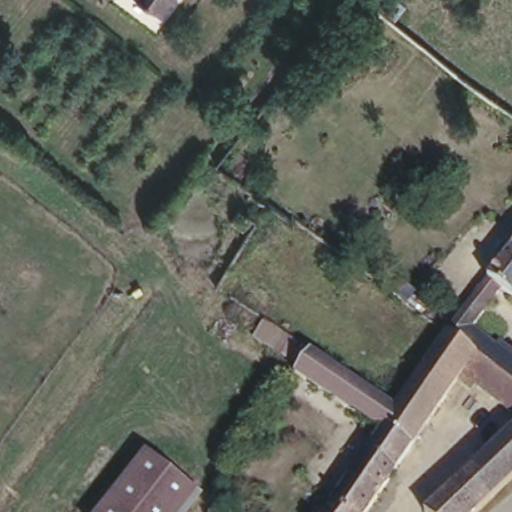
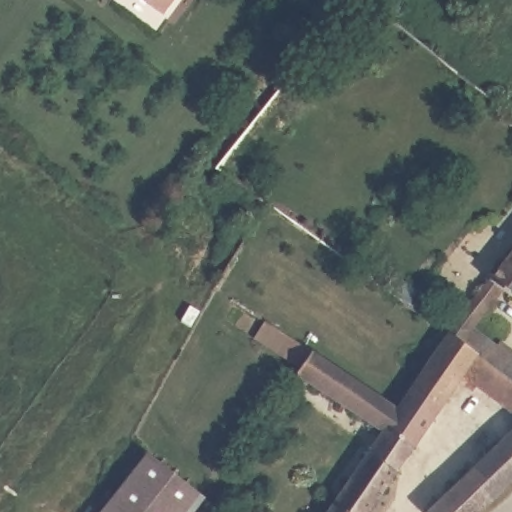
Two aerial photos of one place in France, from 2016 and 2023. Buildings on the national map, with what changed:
unchanged [(159,11),(145,0),(168,0),(159,11)]
unchanged [(461,374),(365,512),(326,512),(385,428),(298,370),(302,365),(313,347),(401,407),(451,334),(487,276),(482,272),(512,235),(512,296),(497,285),(471,328),(512,358),(512,410),(461,374)]
unchanged [(249,335),(263,315),(313,347),(302,365),(249,335)]
unchanged [(512,422),(512,476),(498,490),(474,512),(430,512),(426,507),(502,428),(512,422)]
unchanged [(195,489),(178,512),(96,512),(145,449),(195,489)]

